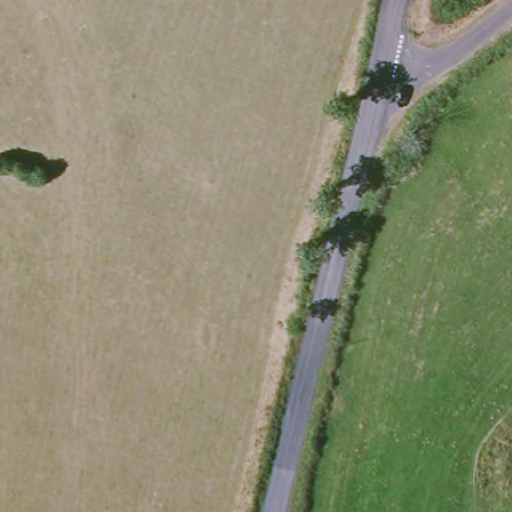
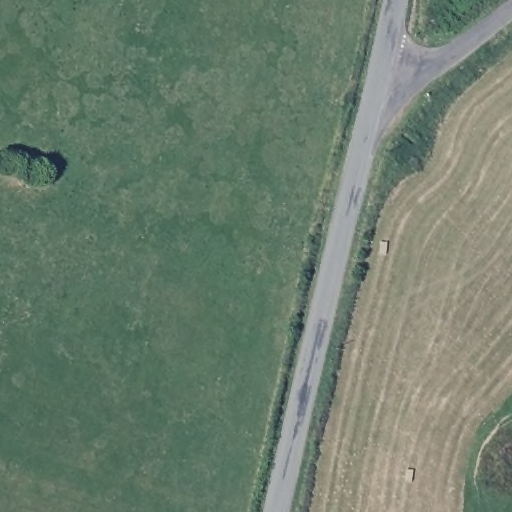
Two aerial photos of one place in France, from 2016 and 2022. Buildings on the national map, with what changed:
unchanged [(434,35),(444,27),(450,36),(440,44),(434,35)]

